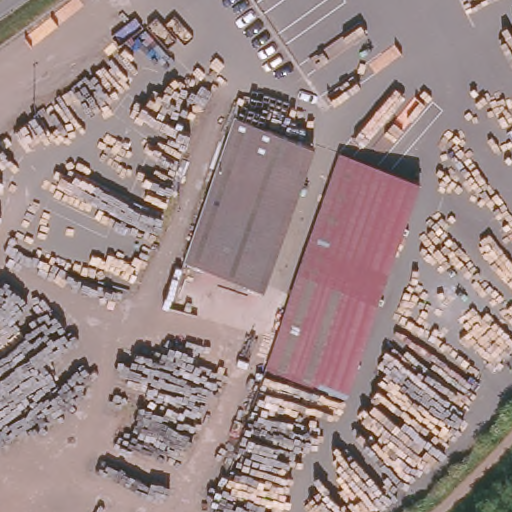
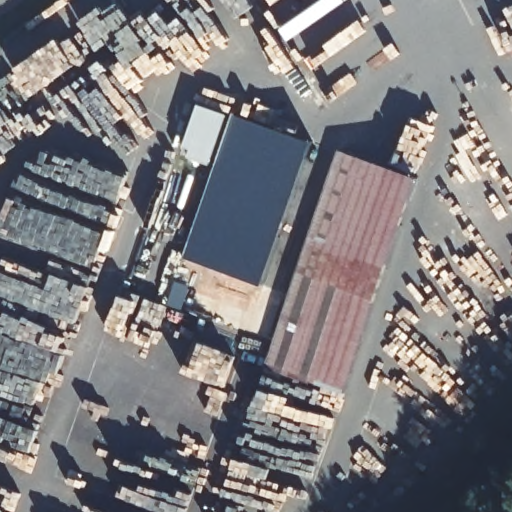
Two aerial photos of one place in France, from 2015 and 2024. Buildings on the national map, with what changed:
new [(200,104),(227,114),(209,164),(189,156),(191,149),(184,146),(200,104)]
unchanged [(234,120),(311,147),(291,201),(261,292),(184,263),(234,120)]
unchanged [(419,183),(344,397),(263,368),(338,156),(419,183)]

